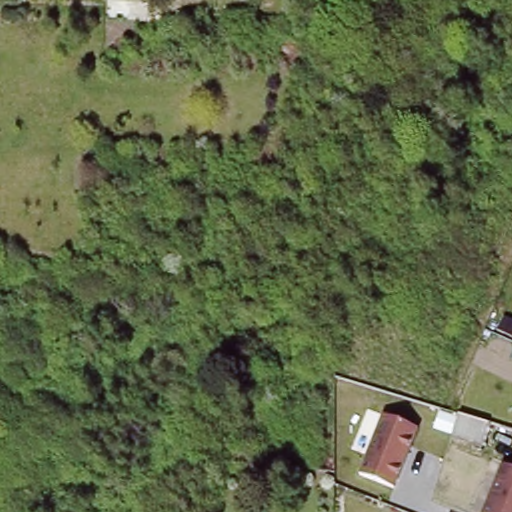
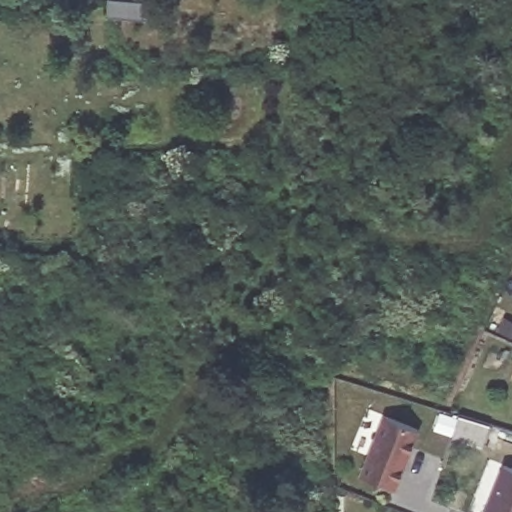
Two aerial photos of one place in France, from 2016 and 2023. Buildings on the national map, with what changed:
unchanged [(423,423),(400,481),(365,467),(389,409),(423,423)]
unchanged [(512,467),(512,512),(485,512),(504,464),(512,467)]

